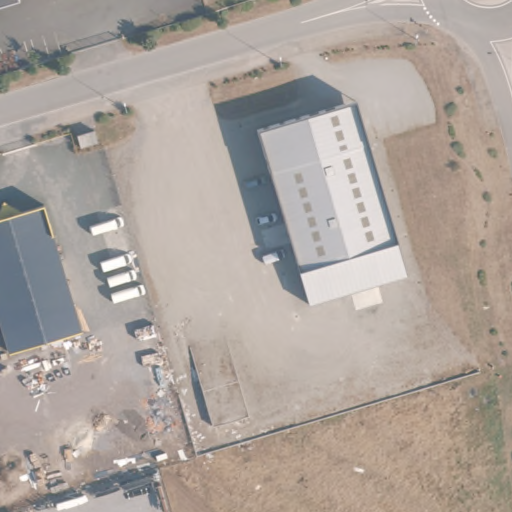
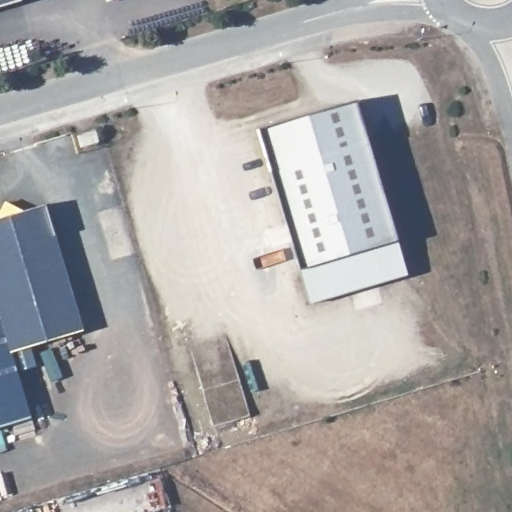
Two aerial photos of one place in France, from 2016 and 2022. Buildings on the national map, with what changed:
unchanged [(19,0),(20,1),(0,7),(0,0),(19,0)]
unchanged [(355,100),(358,112),(396,241),(297,270),(255,129),(342,104),(355,100)]
unchanged [(94,130),(97,142),(80,147),(76,135),(94,130)]
unchanged [(0,321),(0,211),(4,203),(20,212),(44,205),(81,331),(10,352),(0,321)]
unchanged [(396,241),(406,274),(307,303),(297,270),(396,241)]
new [(10,352),(29,417),(0,426),(0,321),(10,352)]

